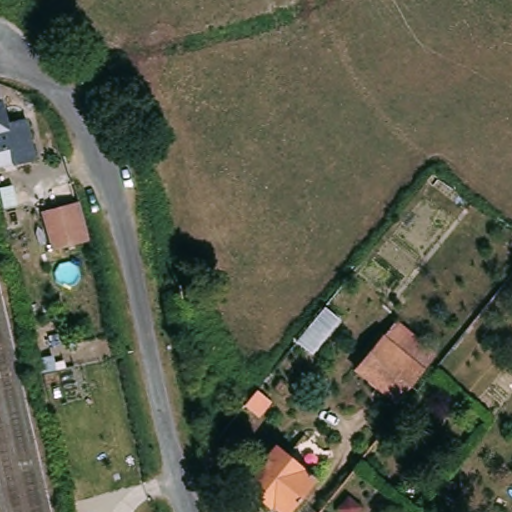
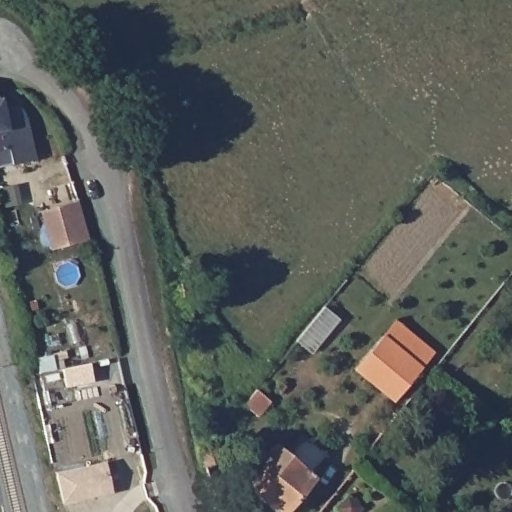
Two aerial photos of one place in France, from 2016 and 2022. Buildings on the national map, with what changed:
unchanged [(25,120),(33,161),(12,166),(7,150),(0,152),(0,105),(7,122),(25,120)]
unchanged [(76,203),(87,240),(51,250),(41,213),(76,203)]
unchanged [(358,369),(384,337),(397,322),(436,353),(423,368),(397,400),(358,369)]
unchanged [(258,412),(251,406),(256,400),(262,405),(258,412)]
unchanged [(211,438),(219,461),(201,467),(199,453),(211,438)]
unchanged [(280,512),(244,484),(276,443),(315,474),(285,512),(280,512)]
new [(104,459),(110,489),(62,501),(56,472),(104,459)]

